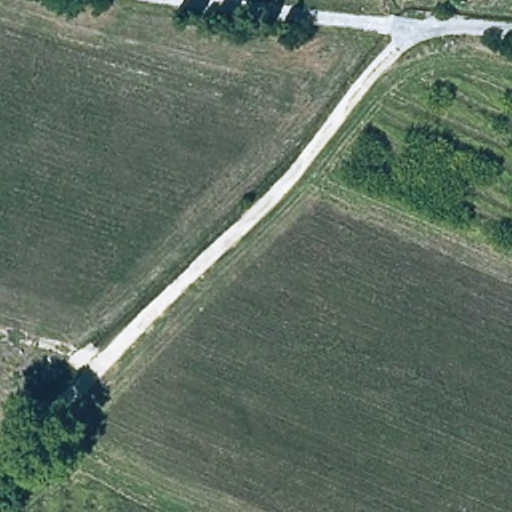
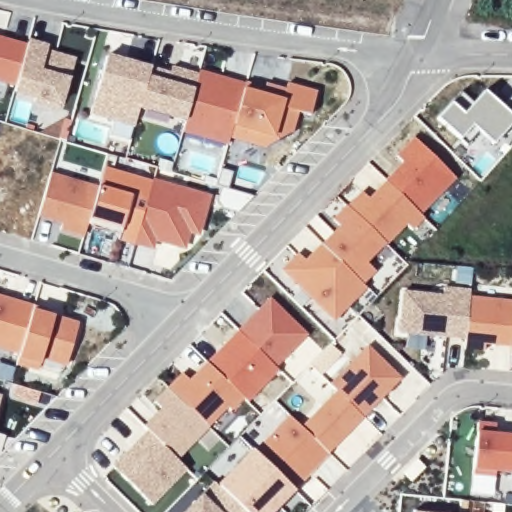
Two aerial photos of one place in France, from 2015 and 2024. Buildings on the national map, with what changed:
new [(15,86),(0,81),(0,38),(26,45),(15,86)]
new [(47,48),(45,53),(72,60),(58,108),(34,101),(35,98),(13,91),(15,86),(26,45),(27,42),(47,48)]
new [(139,108),(134,126),(90,113),(106,56),(124,61),(133,64),(150,69),(139,108)]
new [(139,108),(150,69),(169,74),(171,67),(197,75),(184,121),(139,108)]
new [(229,138),(227,145),(181,131),(184,121),(197,75),(199,71),(221,78),(219,82),(227,85),(229,80),(244,84),(229,138)]
new [(310,114),(296,111),(289,136),(266,149),(229,138),(244,84),(284,95),(287,85),(315,92),(310,114)]
new [(491,145),(477,133),(465,145),(437,116),(448,104),(460,91),(474,103),(484,92),(491,98),(497,91),(507,100),(512,95),(512,122),(491,145)]
new [(419,215),(385,182),(384,181),(401,163),(395,156),(413,139),(455,179),(419,215)]
new [(50,173),(97,187),(83,237),(59,230),(61,224),(37,217),(50,173)]
new [(423,220),(411,232),(405,226),(386,246),(384,243),(346,205),(360,191),(367,200),(385,182),(419,215),(423,220)]
new [(151,183),(206,199),(196,233),(187,230),(182,247),(152,238),(150,247),(134,242),(151,183)]
new [(365,262),(375,272),(362,286),(319,244),(335,228),(329,221),(346,205),(384,243),(365,262)]
new [(366,289),(332,323),(280,271),(296,254),(302,260),(319,244),(362,286),(366,289)]
new [(469,297),(464,340),(397,335),(401,291),(441,294),(442,287),(469,290),(469,297)]
new [(17,302),(32,306),(32,308),(18,354),(0,349),(0,297),(11,300),(17,302)]
new [(276,368),(237,331),(269,297),(308,334),(276,368)]
new [(484,346),(483,352),(462,350),(464,340),(469,297),(512,301),(512,333),(511,348),(484,346)]
new [(48,313),(47,316),(77,325),(66,365),(41,358),(37,370),(16,363),(18,354),(32,308),(48,313)]
new [(237,331),(278,370),(246,402),(242,399),(206,363),(237,331)]
new [(511,348),(512,333),(512,348),(511,348)]
new [(363,418),(334,391),(328,385),(367,345),(401,378),(363,418)]
new [(230,412),(227,408),(207,428),(166,388),(180,373),(187,380),(205,362),(206,363),(242,399),(230,412)]
new [(177,461),(145,431),(141,427),(159,409),(152,402),(166,388),(207,428),(177,461)]
new [(329,454),(300,427),(334,391),(363,418),(329,454)]
new [(294,491),(253,451),(287,415),(300,427),(329,454),(294,491)]
new [(472,473),(477,423),(496,425),(495,435),(512,436),(512,476),(472,473)]
new [(151,505),(111,466),(145,431),(177,461),(186,470),(151,505)]
new [(216,485),(250,449),(253,451),(294,491),(273,512),(243,512),(216,485)]
new [(200,495),(212,482),(243,512),(183,512),(200,495)]
new [(414,511),(428,512),(413,512),(414,511)]

